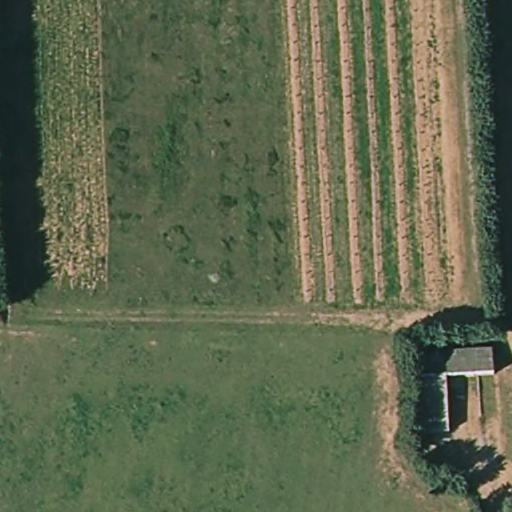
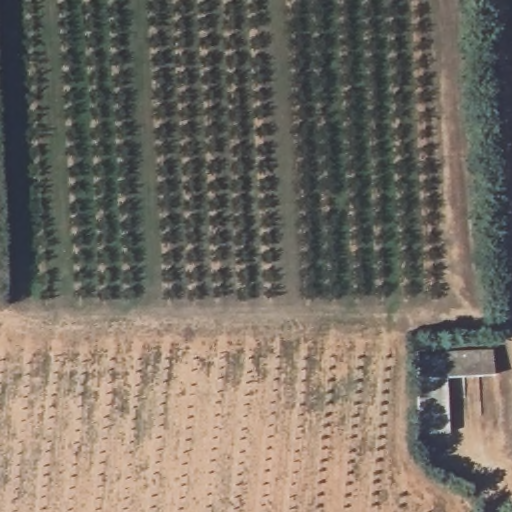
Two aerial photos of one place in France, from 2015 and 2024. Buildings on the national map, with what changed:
unchanged [(493,373),(421,375),(414,347),(493,347),(493,373)]

